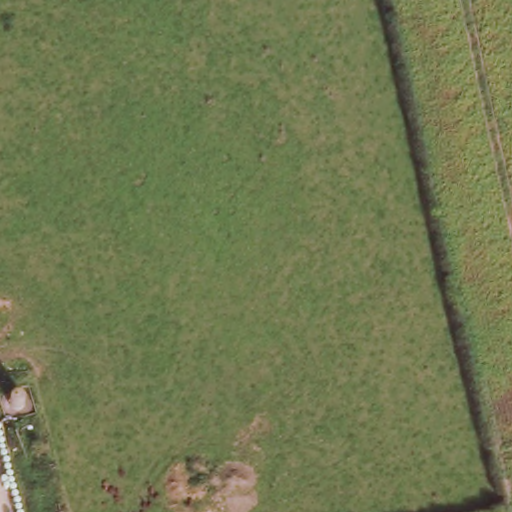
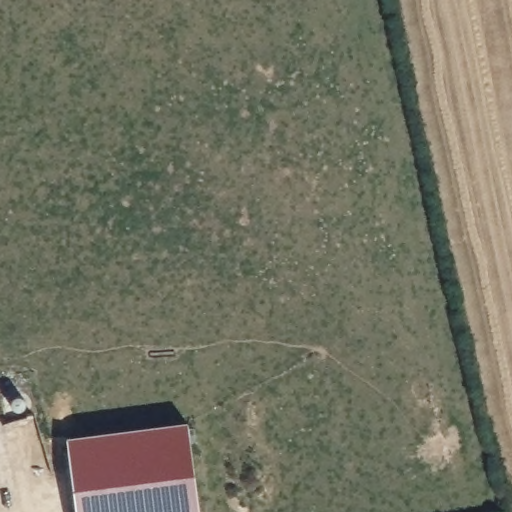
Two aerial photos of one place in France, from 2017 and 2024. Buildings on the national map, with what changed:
new [(198,512),(76,512),(67,439),(187,423),(198,512)]

